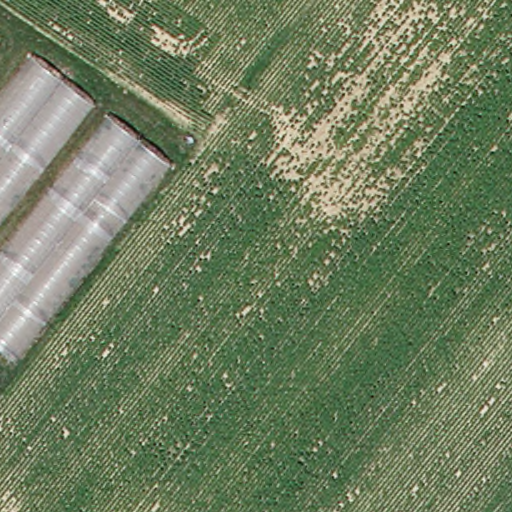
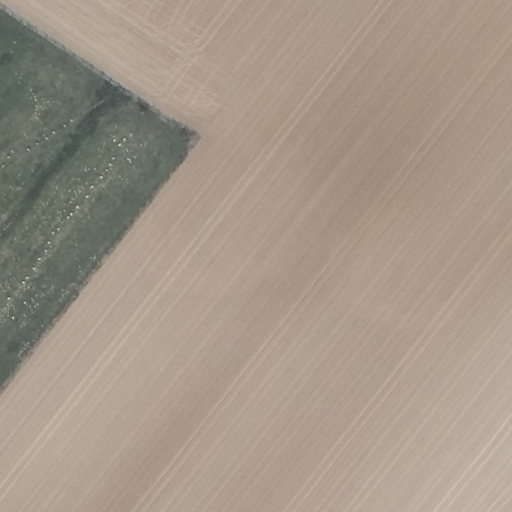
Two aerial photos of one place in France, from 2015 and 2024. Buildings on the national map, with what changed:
demolished [(25,58),(83,104),(0,209),(0,89),(25,58)]
demolished [(106,117),(161,161),(1,360),(0,359),(0,248),(106,117)]

